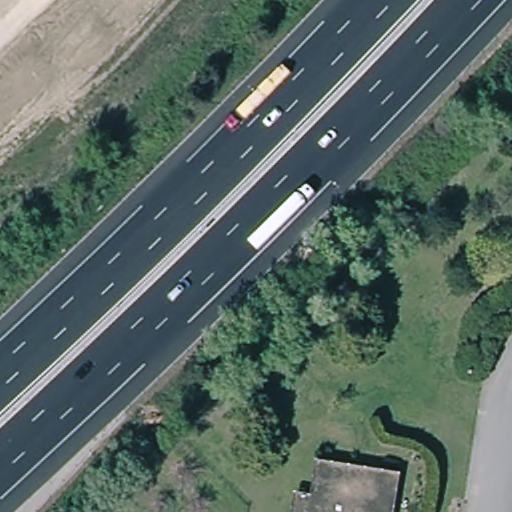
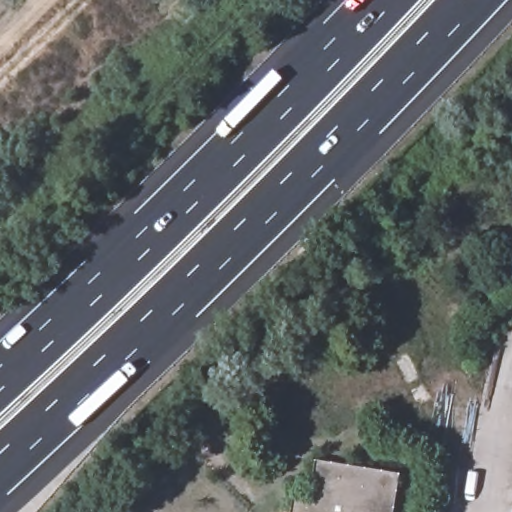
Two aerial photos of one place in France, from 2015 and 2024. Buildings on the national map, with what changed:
unchanged [(295,495),(311,497),(316,465),(403,478),(398,512),(292,512),(295,495)]

